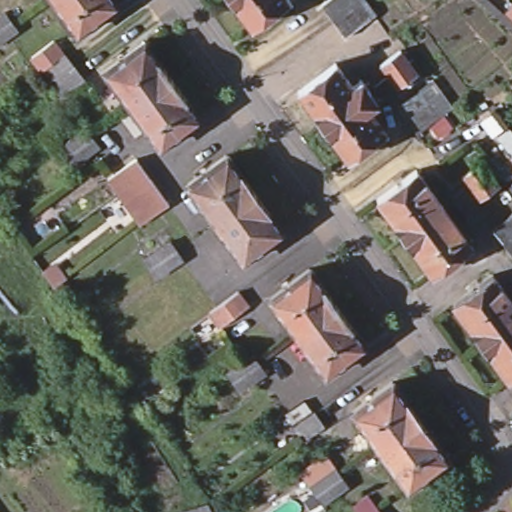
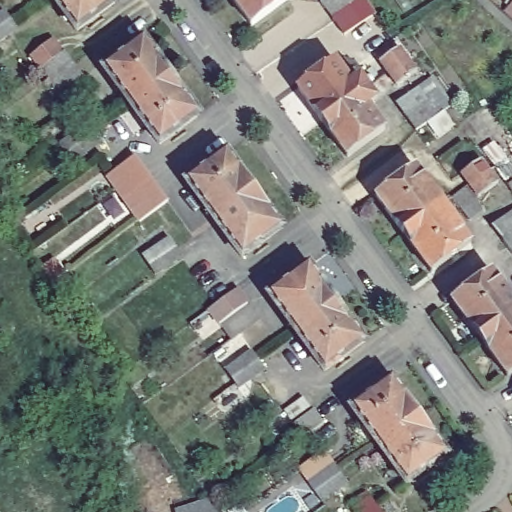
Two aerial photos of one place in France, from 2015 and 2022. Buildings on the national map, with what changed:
unchanged [(72,27),(52,0),(107,0),(72,27)]
unchanged [(247,26),(227,0),(283,0),(247,26)]
unchanged [(337,15),(326,0),(357,0),(371,0),(377,8),(347,30),(337,15)]
unchanged [(4,15),(10,24),(20,37),(0,52),(0,10),(4,15)]
unchanged [(126,101),(98,64),(137,36),(165,74),(126,101)]
unchanged [(57,40),(84,79),(58,96),(32,57),(57,40)]
unchanged [(398,86),(390,75),(382,62),(399,50),(408,62),(416,72),(398,86)]
unchanged [(323,123),(298,90),(335,62),(351,84),(360,77),(370,90),(323,123)]
unchanged [(192,111),(154,140),(126,101),(165,74),(192,111)]
unchanged [(452,104),(445,109),(453,123),(435,136),(426,123),(414,131),(395,104),(433,76),(452,104)]
unchanged [(370,90),(378,102),(369,109),(384,130),(349,158),(323,123),(370,90)]
unchanged [(73,163),(66,154),(58,145),(85,126),(92,135),(98,144),(73,163)]
unchanged [(213,219),(187,182),(225,153),(252,191),(213,219)]
unchanged [(167,200),(139,220),(117,191),(106,175),(135,154),(151,177),(167,200)]
unchanged [(480,198),(471,186),(463,175),(480,162),(488,172),(497,184),(480,198)]
unchanged [(405,234),(377,197),(416,169),(443,206),(405,234)]
unchanged [(483,212),(470,222),(452,200),(467,190),(483,212)]
unchanged [(280,229),(242,258),(213,219),(252,191),(280,229)]
unchanged [(443,206),(472,244),(433,273),(405,234),(443,206)]
unchanged [(490,229),(512,213),(512,261),(501,245),(490,229)]
unchanged [(153,275),(147,266),(145,264),(140,256),(167,237),(173,247),(180,257),(153,275)]
unchanged [(297,333),(270,295),(308,267),(335,304),(297,333)]
unchanged [(454,302),(492,272),(512,300),(512,315),(481,339),(454,302)]
unchanged [(205,290),(217,281),(226,293),(215,302),(208,308),(198,296),(205,290)]
unchanged [(229,321),(221,326),(210,312),(239,291),(250,305),(229,321)]
unchanged [(363,342),(325,371),(297,333),(335,304),(363,342)]
unchanged [(481,339),(512,315),(512,376),(510,378),(481,339)]
unchanged [(226,369),(251,350),(259,361),(265,370),(240,388),(238,387),(233,379),(226,369)]
unchanged [(380,446),(352,408),(390,380),(418,417),(380,446)]
unchanged [(309,406),(290,419),(283,411),(302,397),(309,406)]
unchanged [(315,409),(325,423),(303,439),(300,434),(293,425),(315,409)]
unchanged [(446,455),(407,483),(380,446),(418,417),(446,455)]
unchanged [(322,503),(315,494),(308,486),(327,472),(333,467),(340,476),(346,484),(322,503)]
unchanged [(376,512),(357,512),(352,505),(365,496),(376,512)]
unchanged [(208,503),(214,512),(174,512),(173,511),(208,503)]
unchanged [(120,512),(125,508),(127,512),(120,512)]

